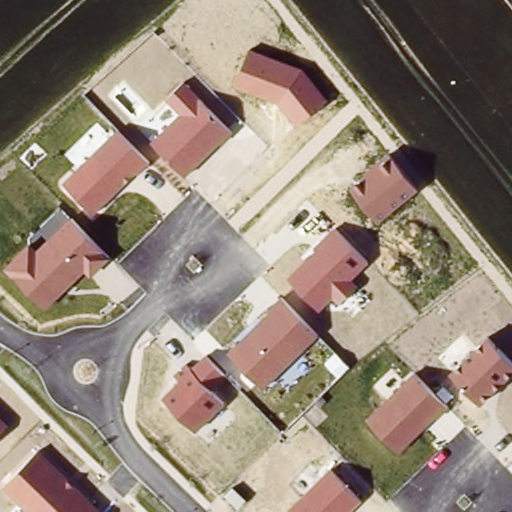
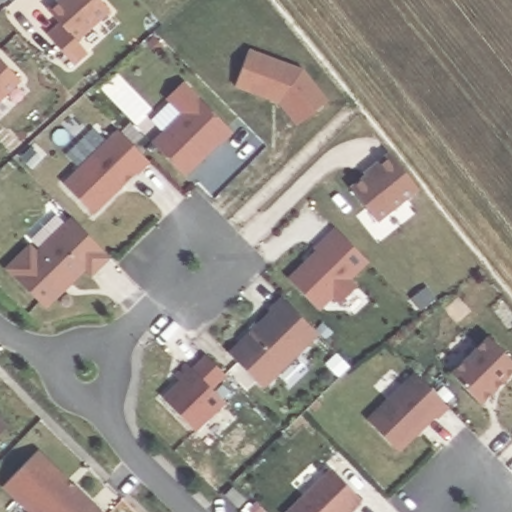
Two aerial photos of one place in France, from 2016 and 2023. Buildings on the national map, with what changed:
new [(78,41),(87,53),(73,65),(47,33),(58,24),(47,7),(55,0),(101,0),(110,10),(78,41)]
unchanged [(249,50),(303,70),(328,101),(294,125),(278,102),(235,88),(249,50)]
new [(0,101),(0,60),(20,80),(0,101)]
unchanged [(152,141),(181,115),(167,100),(186,82),(231,130),(185,176),(152,141)]
unchanged [(118,131),(148,162),(94,214),(63,182),(118,131)]
unchanged [(350,187),(390,155),(417,190),(378,223),(350,187)]
unchanged [(29,245),(34,250),(69,218),(108,259),(91,276),(84,271),(45,309),(5,270),(29,245)]
unchanged [(318,250),(316,247),(334,228),(368,262),(349,281),(356,287),(340,305),(331,297),(320,309),(289,280),(318,250)]
unchanged [(229,350),(283,300),(318,335),(263,386),(229,350)]
unchanged [(489,339),(512,364),(512,370),(480,404),(452,372),(489,339)]
unchanged [(181,382),(176,375),(188,365),(191,368),(204,355),(226,378),(213,392),(223,404),(196,431),(163,398),(181,382)]
unchanged [(415,374),(445,406),(400,450),(369,418),(415,374)]
unchanged [(8,425),(0,433),(0,418),(8,425)]
unchanged [(102,512),(28,512),(3,487),(40,450),(102,512)]
unchanged [(361,500),(348,512),(287,512),(331,468),(361,500)]

